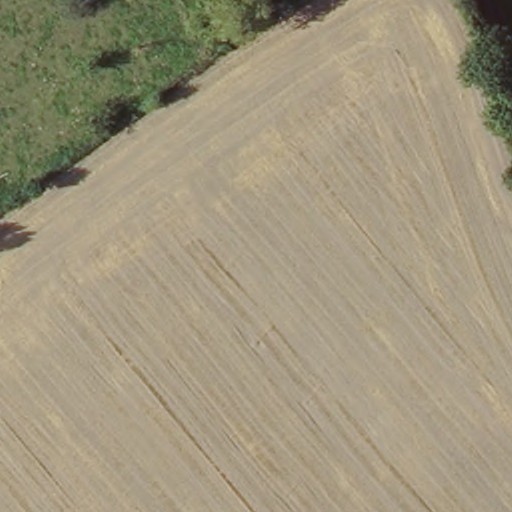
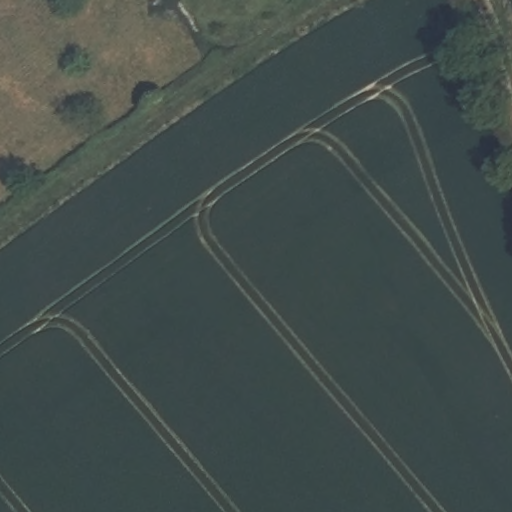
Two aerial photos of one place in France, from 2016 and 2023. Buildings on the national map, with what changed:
[]

